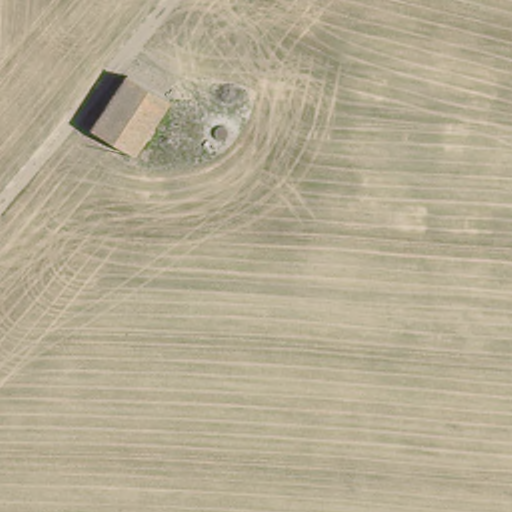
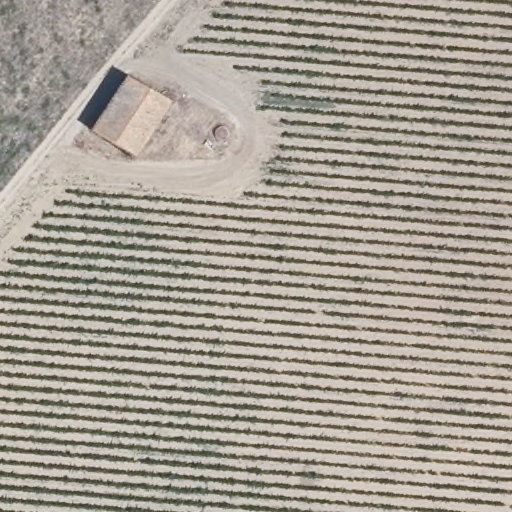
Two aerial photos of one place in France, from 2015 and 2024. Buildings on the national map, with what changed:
unchanged [(165,103),(126,155),(90,128),(127,75),(165,103)]

